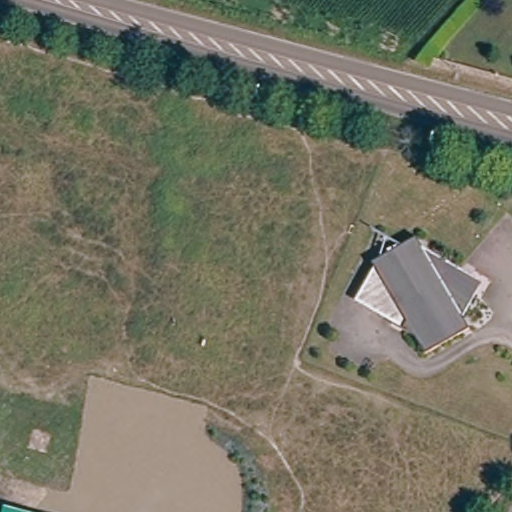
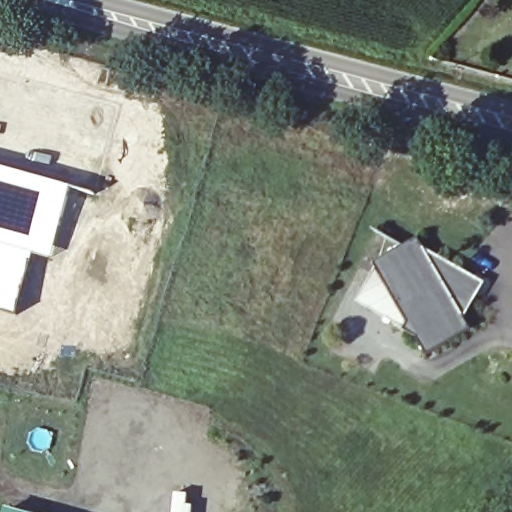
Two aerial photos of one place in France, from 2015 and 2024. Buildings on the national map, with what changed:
new [(73,186),(52,259),(34,254),(0,244),(0,165),(73,186)]
unchanged [(426,257),(479,280),(466,317),(473,325),(427,353),(415,336),(361,316),(376,276),(372,268),(412,241),(426,257)]
new [(34,254),(16,315),(0,311),(0,244),(34,254)]
unchanged [(7,510),(13,512),(6,512),(7,510)]

